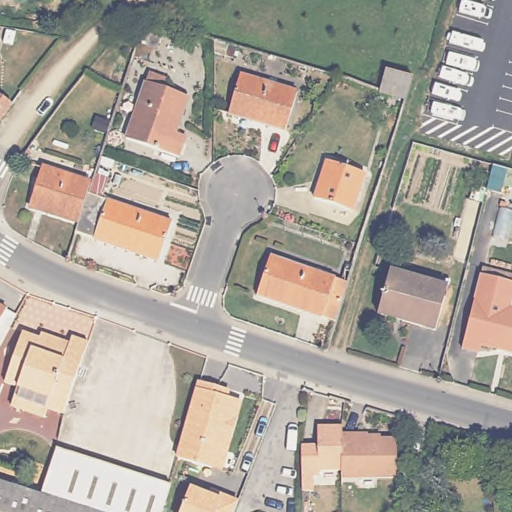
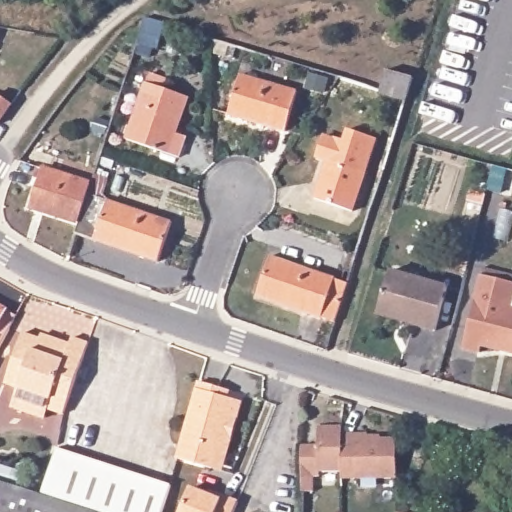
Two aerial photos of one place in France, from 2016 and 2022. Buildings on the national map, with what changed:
unchanged [(141,42),(147,20),(169,27),(161,48),(141,42)]
unchanged [(382,92),(389,72),(414,80),(407,100),(382,92)]
unchanged [(163,89),(186,96),(175,132),(186,136),(179,156),(127,139),(148,74),(166,80),(163,89)]
unchanged [(284,134),(228,116),(241,77),(296,95),(284,134)]
unchanged [(0,123),(0,92),(15,104),(0,123)]
new [(314,157),(325,131),(342,137),(346,126),(379,136),(367,174),(327,162),(314,157)]
unchanged [(102,158),(87,153),(91,139),(107,144),(103,154),(102,158)]
unchanged [(354,212),(315,199),(327,162),(367,174),(354,212)]
unchanged [(85,208),(80,223),(34,207),(46,170),(93,185),(92,189),(91,191),(85,208)]
unchanged [(172,220),(157,259),(77,232),(80,223),(85,208),(91,191),(172,220)]
unchanged [(260,295),(273,257),(348,284),(336,322),(260,295)]
unchanged [(434,328),(377,313),(389,270),(446,285),(434,328)]
unchanged [(512,306),(512,351),(480,343),(478,351),(462,347),(480,273),(512,281),(512,300),(510,306),(512,306)]
unchanged [(0,346),(0,305),(16,314),(0,346)]
unchanged [(12,411),(18,393),(3,387),(21,336),(51,347),(53,342),(70,349),(72,342),(89,348),(64,418),(49,412),(45,423),(12,411)]
unchanged [(219,390),(217,397),(242,405),(228,455),(218,452),(213,471),(179,462),(180,457),(201,385),(219,390)]
unchanged [(339,470),(319,469),(319,475),(300,475),(300,445),(302,445),(317,444),(317,425),(341,425),(341,433),(340,456),(339,468),(339,470)]
unchanged [(359,478),(359,469),(339,468),(340,456),(341,433),(366,433),(366,438),(393,439),(391,479),(359,478)]
unchanged [(56,447),(170,484),(162,512),(0,512),(0,482),(41,494),(56,447)]
unchanged [(222,495),(238,502),(235,512),(180,512),(190,488),(220,500),(222,495)]

